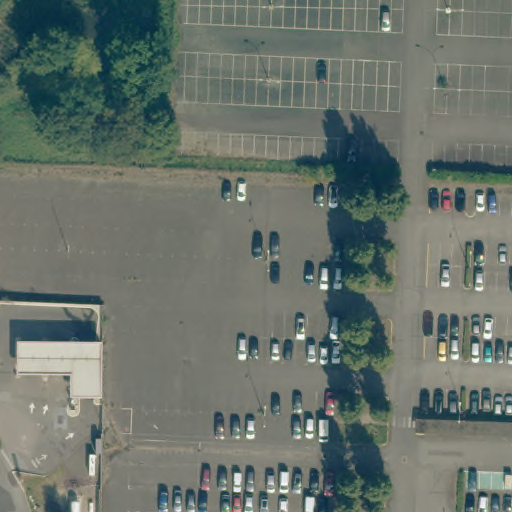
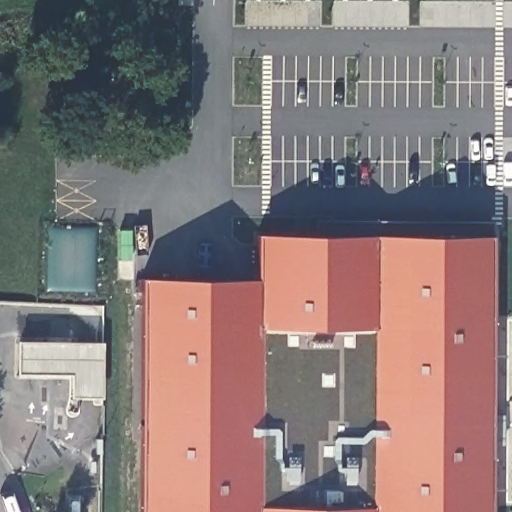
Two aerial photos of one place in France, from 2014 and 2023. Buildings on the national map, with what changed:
new [(144,279),(257,278),(258,234),(306,233),(315,218),(490,220),(492,236),(490,512),(139,512),(144,279)]
unchanged [(16,342),(99,343),(99,374),(98,397),(68,397),(68,374),(15,373),(16,342)]

